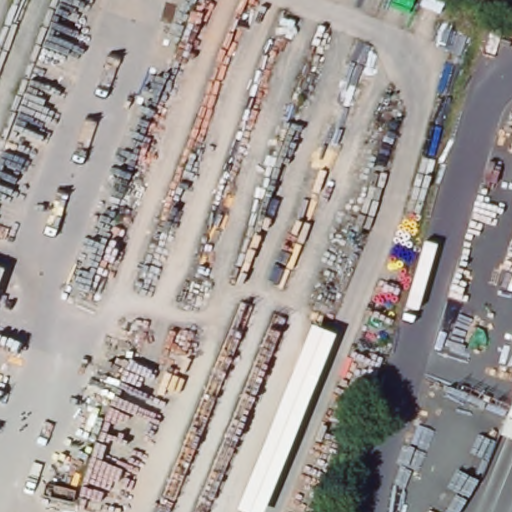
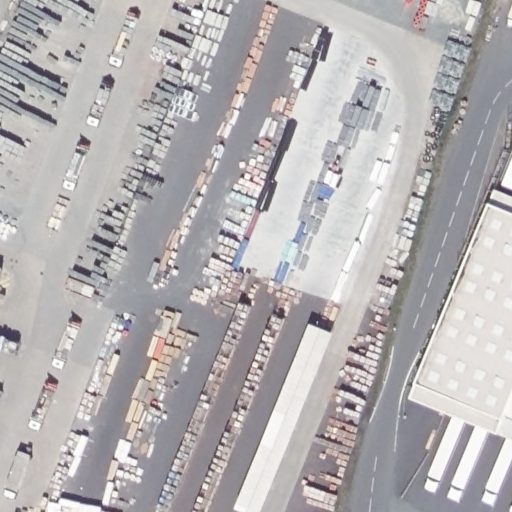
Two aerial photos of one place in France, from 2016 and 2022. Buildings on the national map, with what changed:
new [(491,204),(497,190),(512,196),(512,397),(502,419),(497,433),(411,398),(417,383),(491,204)]
unchanged [(4,267),(0,278),(0,266),(4,267)]
demolished [(334,333),(263,512),(241,512),(234,509),(308,324),(334,333)]
unchanged [(512,397),(512,439),(497,433),(512,397)]

